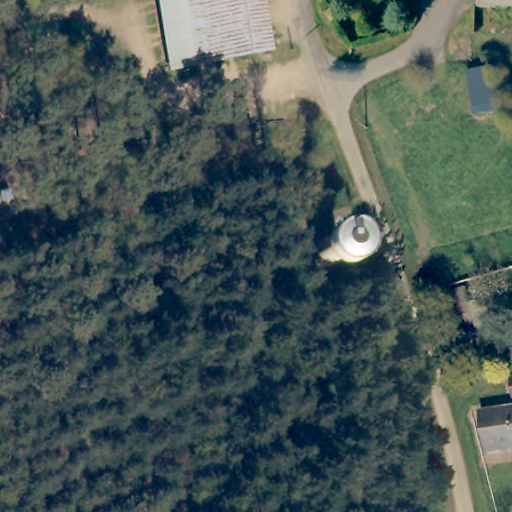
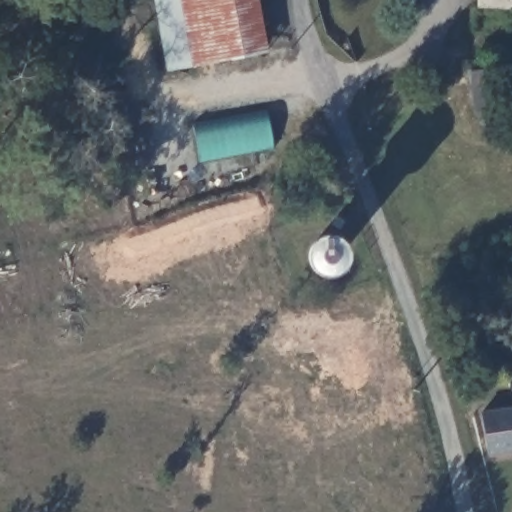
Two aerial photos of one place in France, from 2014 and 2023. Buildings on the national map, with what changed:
unchanged [(155,0),(258,0),(268,52),(167,70),(155,0)]
unchanged [(475,6),(477,0),(512,0),(512,7),(475,6)]
new [(200,160),(194,124),(268,111),(275,147),(200,160)]
unchanged [(465,289),(470,302),(442,310),(438,297),(465,289)]
unchanged [(512,405),(512,444),(488,447),(482,410),(512,405)]

